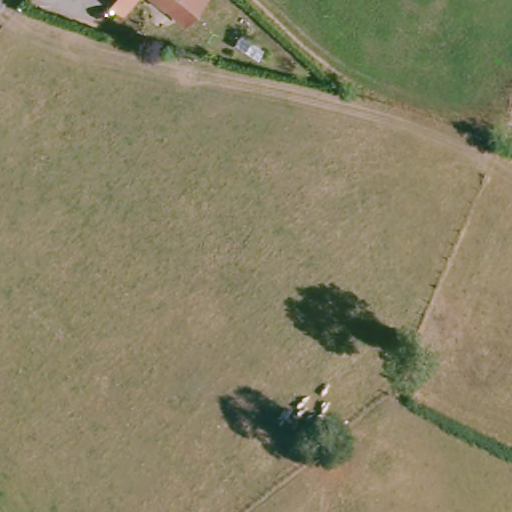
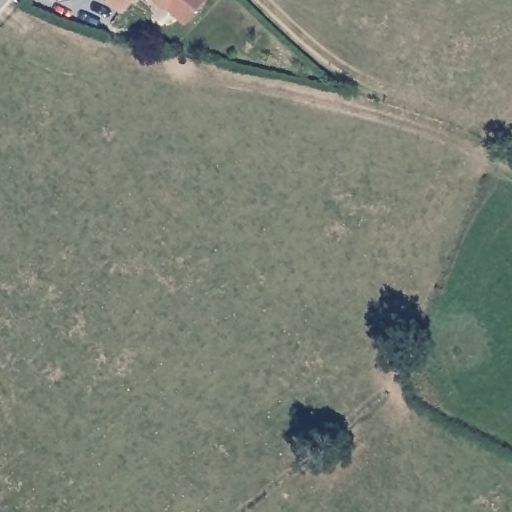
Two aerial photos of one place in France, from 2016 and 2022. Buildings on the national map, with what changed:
unchanged [(127,10),(117,0),(137,0),(127,10)]
unchanged [(169,5),(163,0),(173,0),(169,5)]

